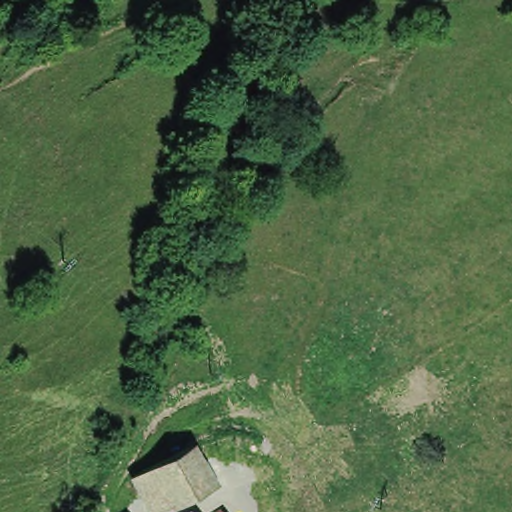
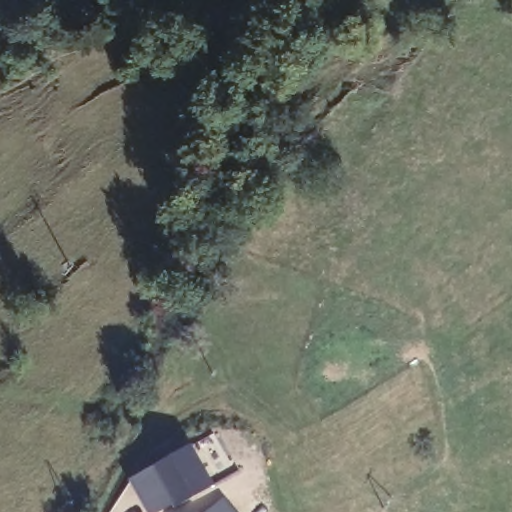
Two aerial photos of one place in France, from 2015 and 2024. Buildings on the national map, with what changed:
unchanged [(133,474),(153,463),(188,443),(196,438),(202,448),(193,453),(209,482),(174,502),(172,497),(153,508),(133,474)]
unchanged [(198,510),(200,512),(197,512),(198,510)]

